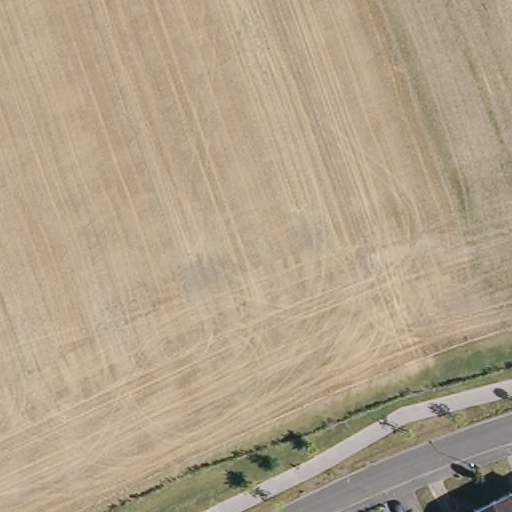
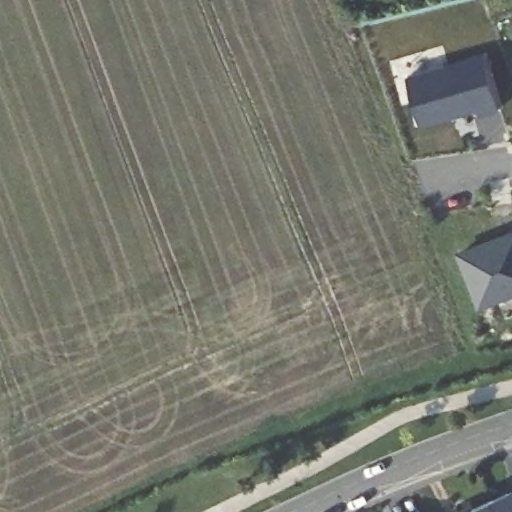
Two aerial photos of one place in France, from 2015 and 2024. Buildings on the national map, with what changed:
new [(484,55),(500,109),(479,114),(478,109),(461,114),(459,112),(450,114),(451,117),(421,126),(407,78),(484,55)]
new [(461,253),(494,240),(497,247),(508,243),(504,236),(512,233),(512,293),(481,305),(461,253)]
unchanged [(512,484),(512,489),(510,485),(512,484)]
unchanged [(512,489),(512,512),(494,512),(489,501),(512,489)]
unchanged [(465,512),(489,501),(494,512),(465,512)]
unchanged [(464,512),(455,512),(462,508),(464,512)]

